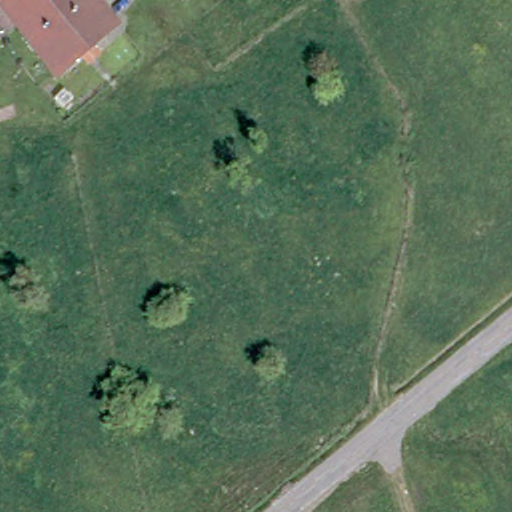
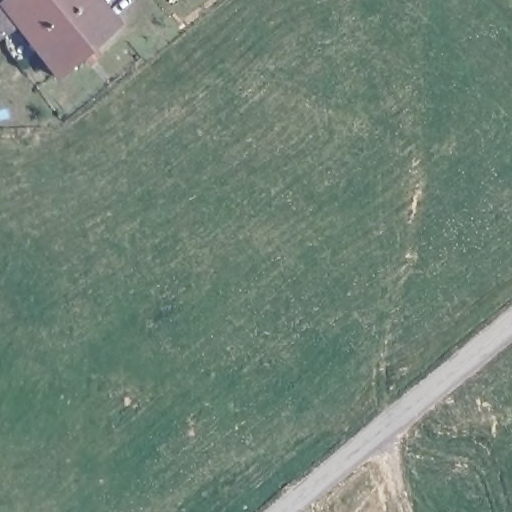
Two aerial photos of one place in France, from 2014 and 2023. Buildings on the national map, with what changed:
unchanged [(56,86),(13,30),(0,40),(0,0),(93,0),(119,33),(56,86)]

